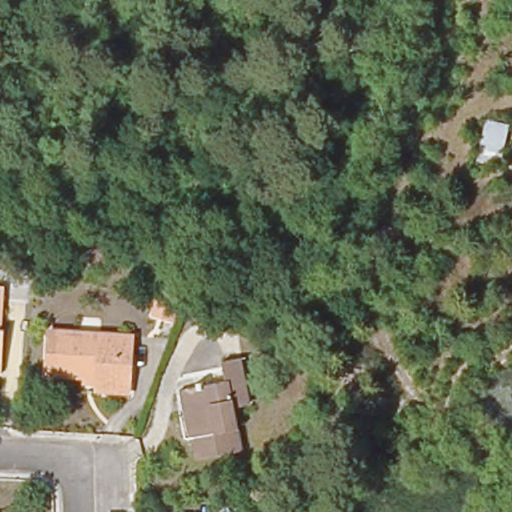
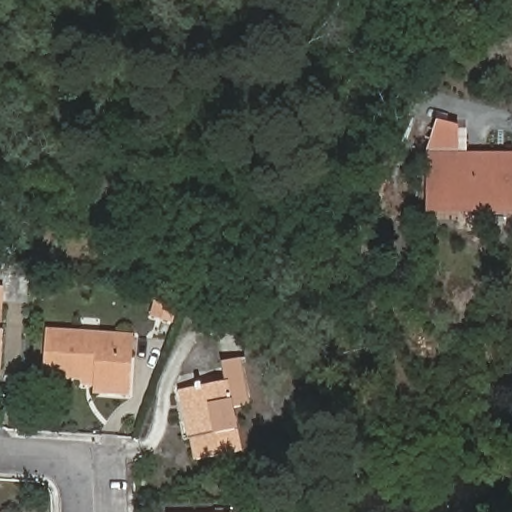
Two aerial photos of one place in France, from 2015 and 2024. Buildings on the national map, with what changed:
demolished [(504,124),(493,165),(472,159),(484,119),(504,124)]
new [(460,125),(460,151),(512,151),(512,212),(427,212),(427,151),(436,121),(460,125)]
unchanged [(2,286),(0,320),(0,286),(2,286)]
unchanged [(173,321),(152,315),(156,301),(177,307),(173,321)]
unchanged [(0,372),(0,330),(4,330),(2,372),(0,372)]
unchanged [(130,388),(94,386),(94,378),(45,375),(48,331),(132,337),(130,388)]
unchanged [(199,439),(204,438),(201,418),(196,419),(190,390),(230,382),(227,362),(244,359),(253,405),(236,408),(246,451),(203,459),(199,439)]

